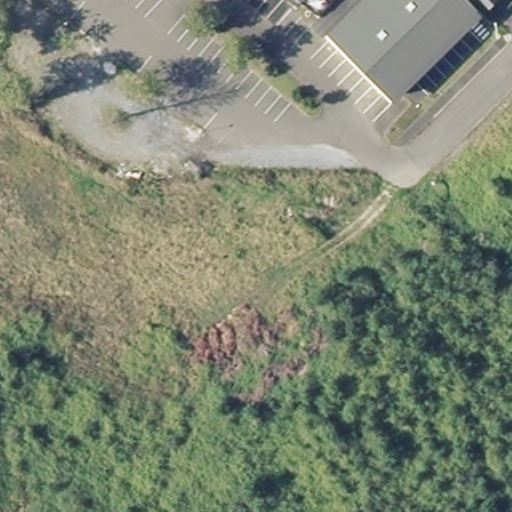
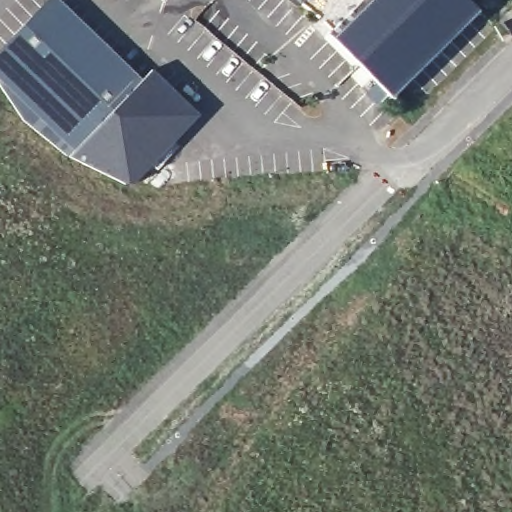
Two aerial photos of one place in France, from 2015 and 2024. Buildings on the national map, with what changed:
new [(0,86),(0,51),(48,0),(58,0),(143,82),(152,71),(197,114),(132,186),(69,157),(24,122),(0,86)]
unchanged [(292,0),(288,3),(286,0),(292,0)]
unchanged [(396,102),(328,34),(362,0),(473,0),(487,14),(396,102)]
unchanged [(488,7),(481,0),(496,0),(491,5),(488,7)]

